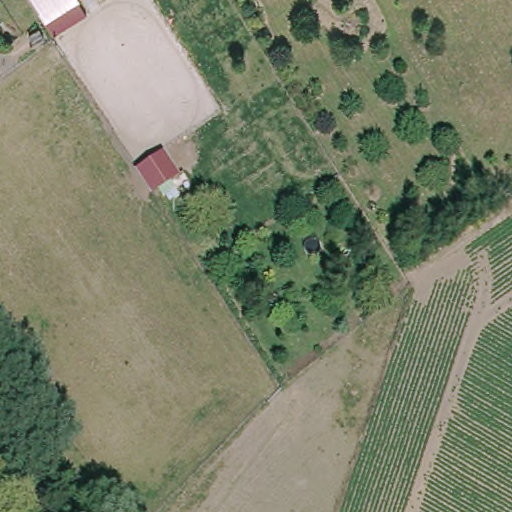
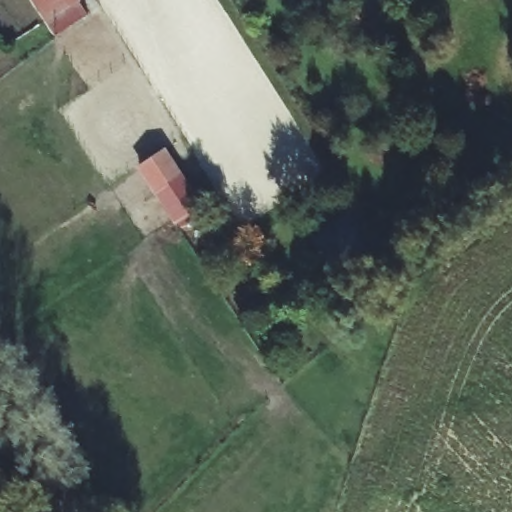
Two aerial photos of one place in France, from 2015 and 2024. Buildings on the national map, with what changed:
unchanged [(29,0),(77,0),(85,13),(52,38),(37,14),(29,0)]
new [(135,168),(164,149),(203,208),(174,227),(135,168)]

